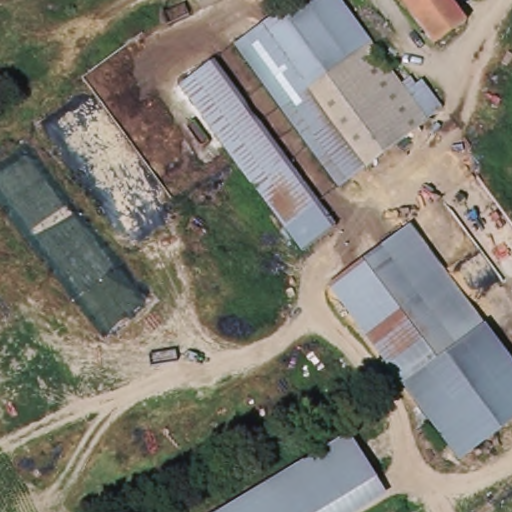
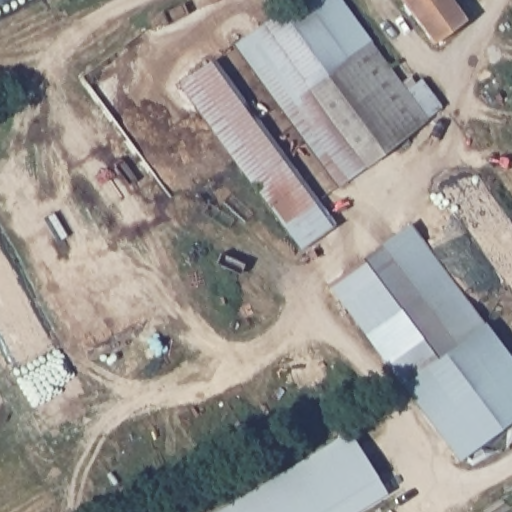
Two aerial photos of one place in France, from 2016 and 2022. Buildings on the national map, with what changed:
unchanged [(372,46),(344,65),(296,2),(295,1),(296,0),(340,0),(372,46)]
unchanged [(469,23),(438,46),(405,0),(452,0),(469,23)]
unchanged [(295,1),(296,2),(344,65),(310,91),(366,165),(339,184),(234,46),(295,1)]
unchanged [(310,91),(344,65),(372,46),(375,50),(405,92),(421,81),(440,109),(366,165),(310,91)]
unchanged [(180,85),(214,62),(317,202),(286,226),(180,85)]
unchanged [(317,202),(336,227),(304,250),(286,226),(317,202)]
unchanged [(486,328),(402,388),(328,288),(411,225),(486,328)]
unchanged [(512,364),(512,421),(456,465),(402,388),(486,328),(512,364)]
unchanged [(388,498),(365,512),(220,512),(346,433),(388,498)]

